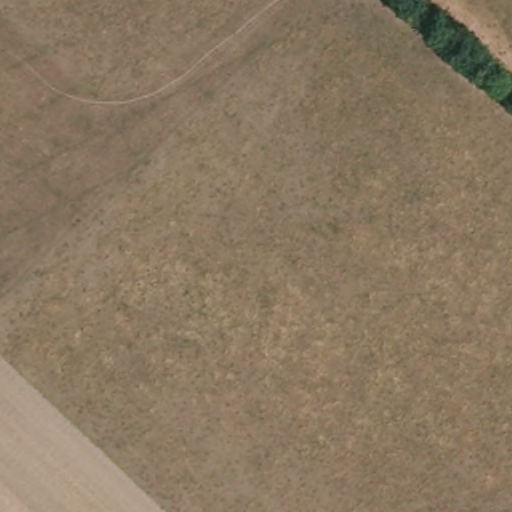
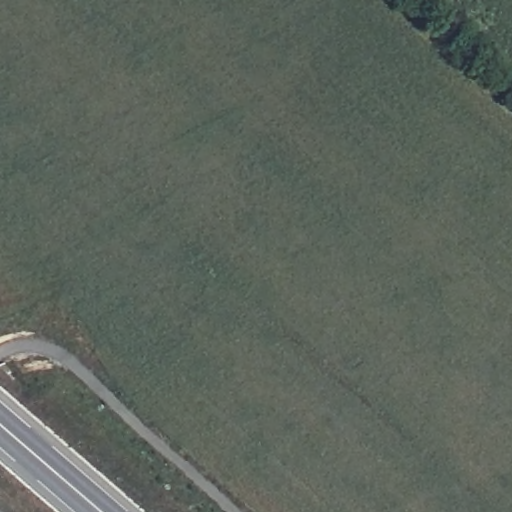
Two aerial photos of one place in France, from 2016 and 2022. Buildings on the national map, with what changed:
[]

